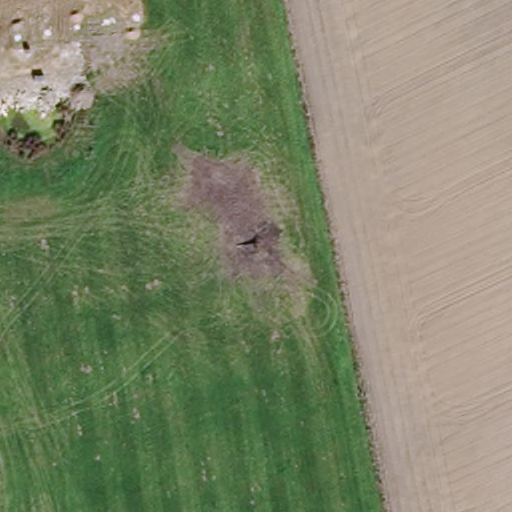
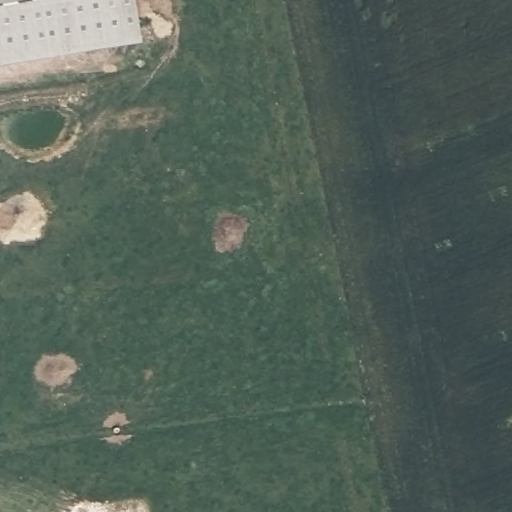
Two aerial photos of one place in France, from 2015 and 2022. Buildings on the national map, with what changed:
new [(0,64),(0,0),(137,0),(144,40),(0,64)]

